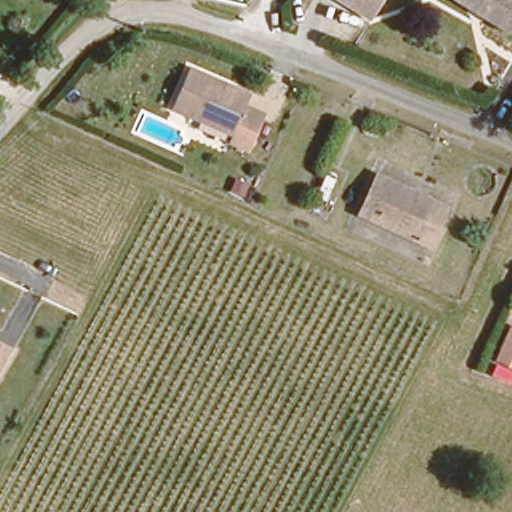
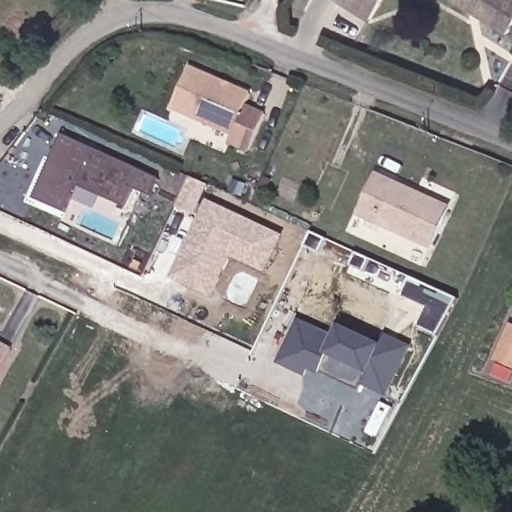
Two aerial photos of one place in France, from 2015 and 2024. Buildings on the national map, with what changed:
unchanged [(343,0),(382,0),(370,17),(343,0)]
unchanged [(512,0),(512,28),(509,33),(481,15),(471,10),(454,0),(512,0)]
unchanged [(191,67),(252,94),(247,105),(267,114),(251,150),(231,141),(235,134),(174,106),(191,67)]
new [(150,194),(133,187),(124,207),(101,197),(96,209),(72,199),(66,213),(35,199),(63,136),(157,177),(150,194)]
unchanged [(377,179),(449,212),(431,251),(359,218),(377,179)]
new [(208,204),(284,236),(265,274),(232,258),(213,298),(173,279),(208,204)]
unchanged [(486,385),(496,364),(489,361),(507,322),(512,324),(512,377),(505,393),(486,385)]
new [(299,323),(334,336),(339,325),(381,344),(385,335),(411,347),(388,396),(362,391),(321,372),(319,376),(309,372),(307,378),(280,365),(282,360),(299,323)]
unchanged [(2,347),(0,352),(0,346),(2,347)]

